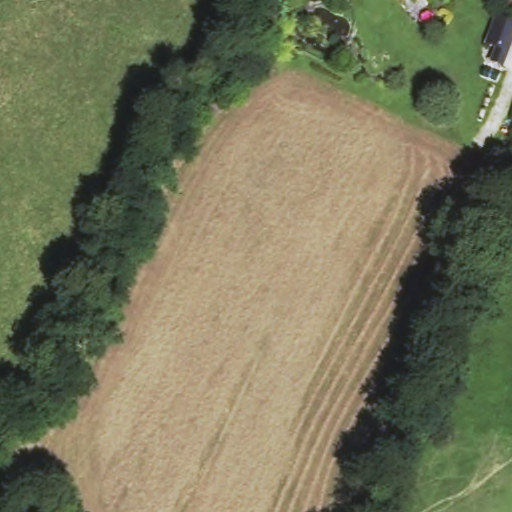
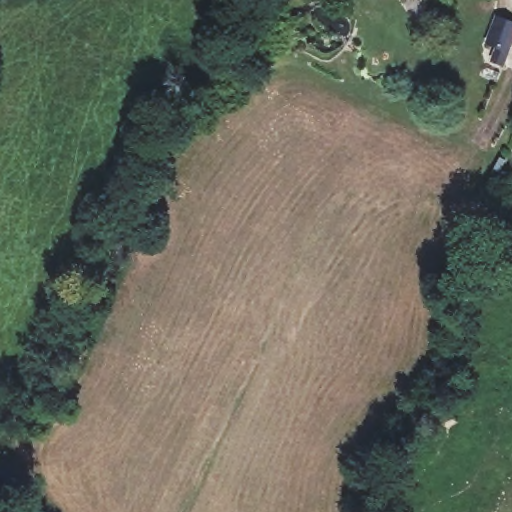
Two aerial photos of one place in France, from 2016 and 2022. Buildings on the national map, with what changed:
unchanged [(504,45),(489,36),(502,14),(512,19),(512,56),(508,65),(496,59),(504,45)]

